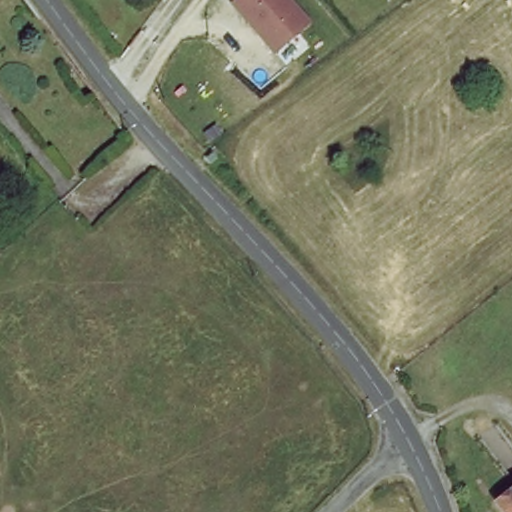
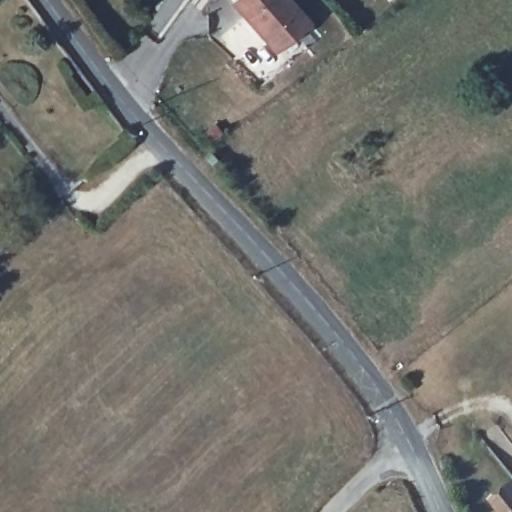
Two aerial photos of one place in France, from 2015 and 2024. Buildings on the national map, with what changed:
unchanged [(279,50),(233,0),(298,0),(315,18),(279,50)]
unchanged [(495,501),(512,487),(512,512),(504,512),(502,510),(495,501)]

